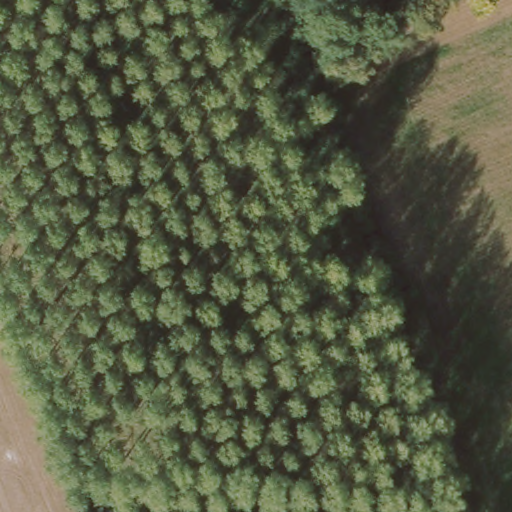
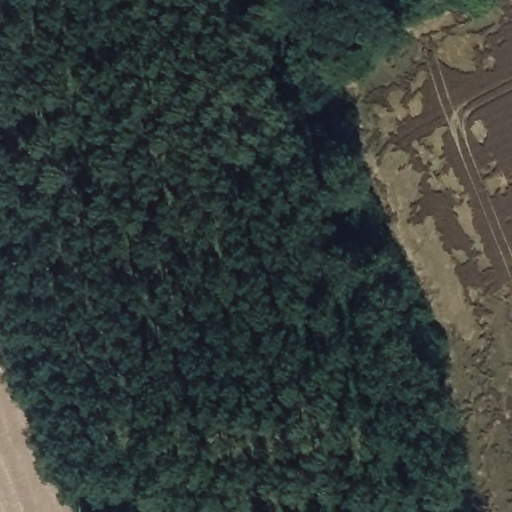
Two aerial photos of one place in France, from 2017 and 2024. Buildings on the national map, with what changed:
unchanged [(422,358),(410,322),(429,317),(440,352),(422,358)]

